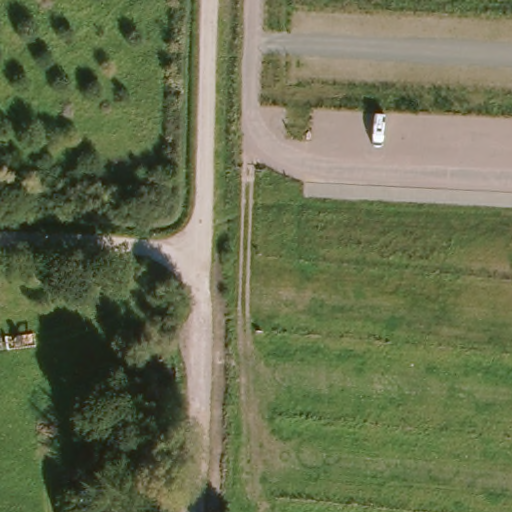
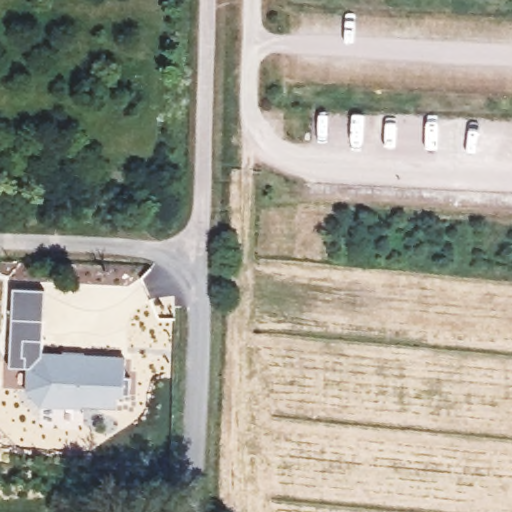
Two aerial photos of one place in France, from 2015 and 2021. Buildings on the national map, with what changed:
new [(45,289),(42,352),(64,354),(64,350),(86,352),(85,355),(126,357),(125,377),(131,377),(131,393),(125,393),(125,399),(116,397),(116,407),(85,406),(85,410),(41,408),(25,391),(26,368),(8,366),(13,288),(45,289)]
unchanged [(102,512),(78,512),(75,495),(98,491),(102,512)]

